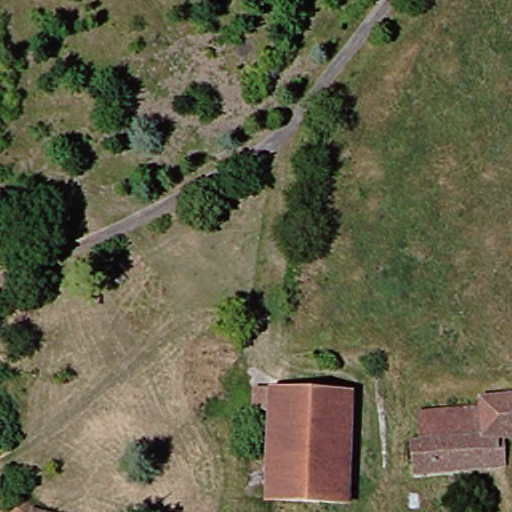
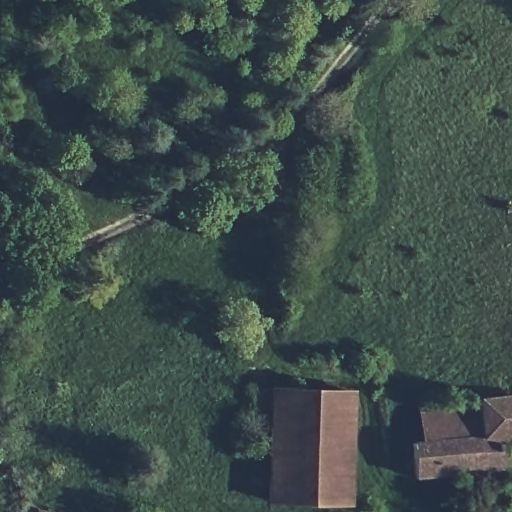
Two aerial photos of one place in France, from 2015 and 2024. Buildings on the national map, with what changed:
unchanged [(471,408),(470,401),(512,396),(512,448),(497,448),(497,474),(422,481),(408,476),(405,417),(471,408)]
unchanged [(347,504),(266,505),(261,426),(244,424),(247,405),(264,406),(265,403),(342,402),(347,504)]
unchanged [(27,503),(34,512),(14,512),(27,503)]

